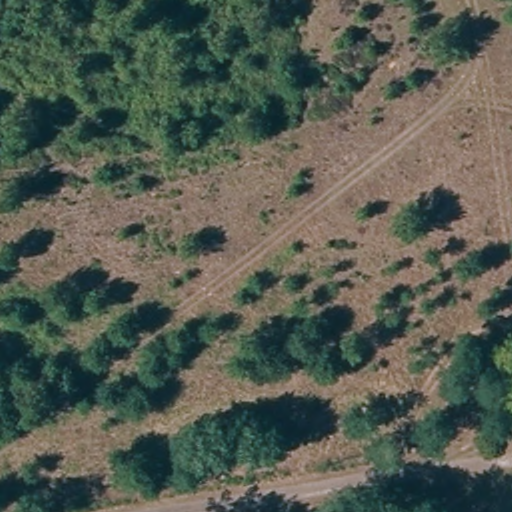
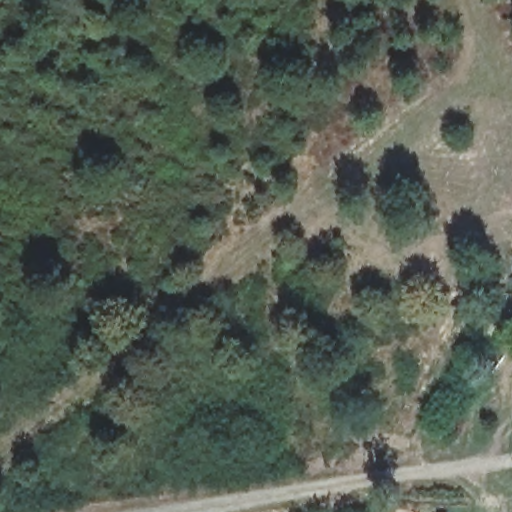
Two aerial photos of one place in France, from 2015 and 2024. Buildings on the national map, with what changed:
[]

